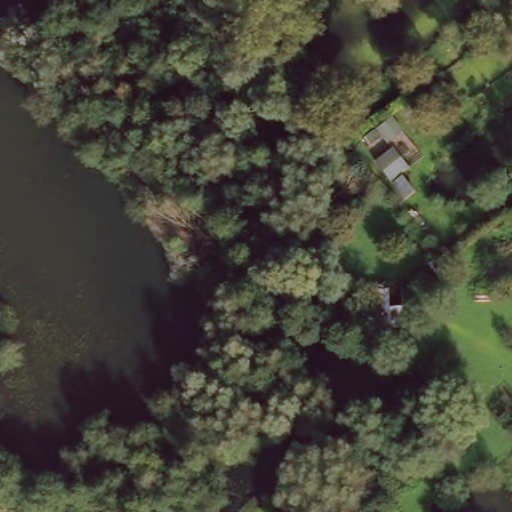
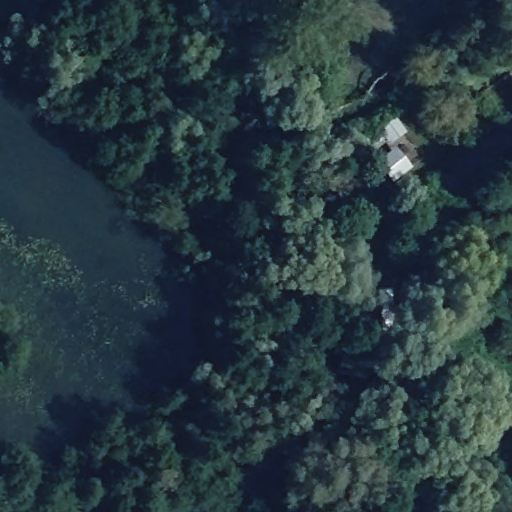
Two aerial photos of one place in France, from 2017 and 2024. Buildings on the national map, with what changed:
unchanged [(380,339),(378,294),(389,294),(389,308),(407,307),(409,339),(380,339)]

